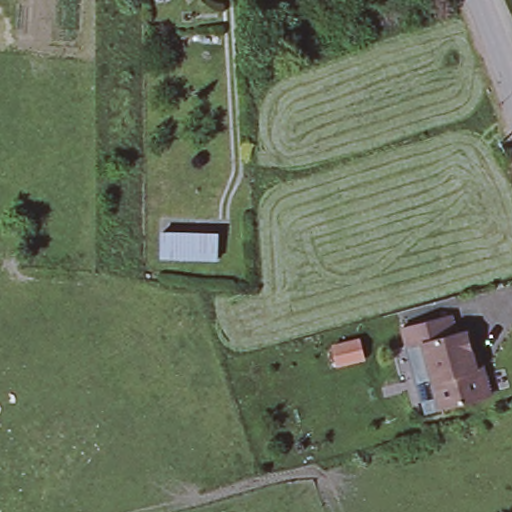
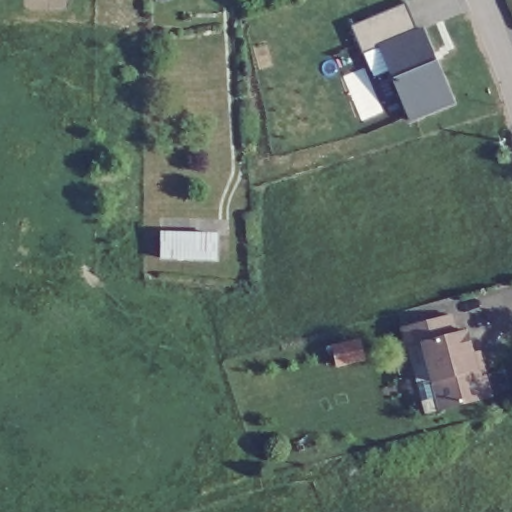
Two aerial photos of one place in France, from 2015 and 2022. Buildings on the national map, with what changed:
new [(405,1),(417,30),(422,27),(432,52),(427,54),(430,62),(435,61),(452,101),(410,120),(379,46),(362,53),(350,25),(405,1)]
unchanged [(160,257),(161,233),(197,234),(217,235),(217,259),(197,258),(160,257)]
unchanged [(397,326),(446,312),(452,332),(462,329),(468,351),(474,349),(480,371),(485,389),(480,397),(437,409),(419,341),(402,346),(397,326)]
unchanged [(357,339),(362,359),(337,365),(332,346),(357,339)]

